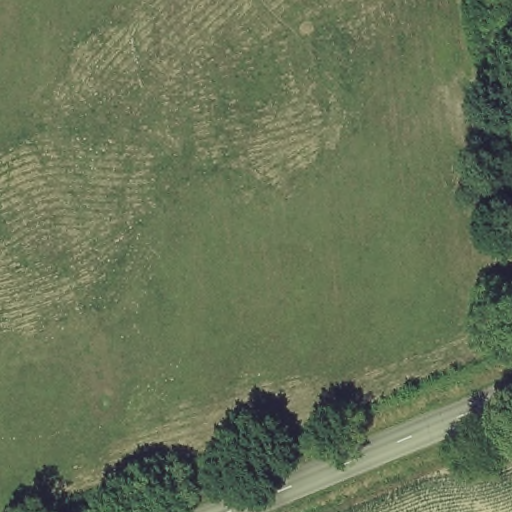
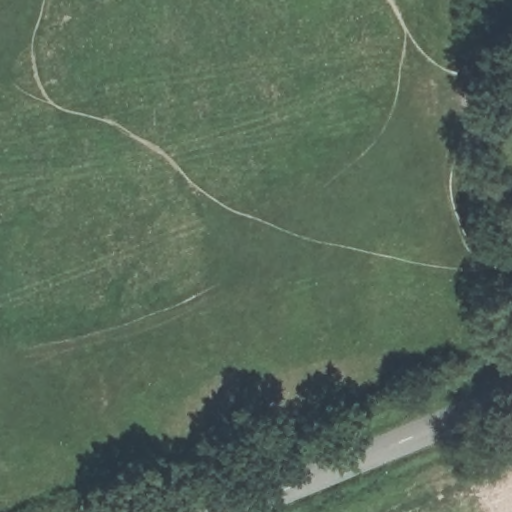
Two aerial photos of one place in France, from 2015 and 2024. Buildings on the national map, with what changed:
[]

